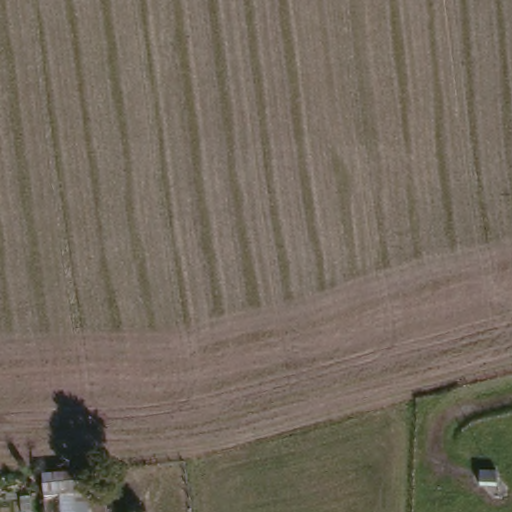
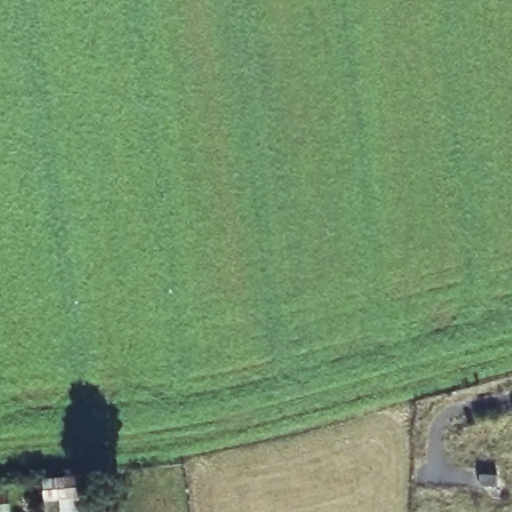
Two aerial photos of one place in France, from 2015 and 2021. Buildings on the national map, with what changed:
unchanged [(490,464),(490,477),(470,476),(470,463),(490,464)]
unchanged [(41,508),(39,476),(85,475),(89,512),(57,512),(57,507),(41,508)]

